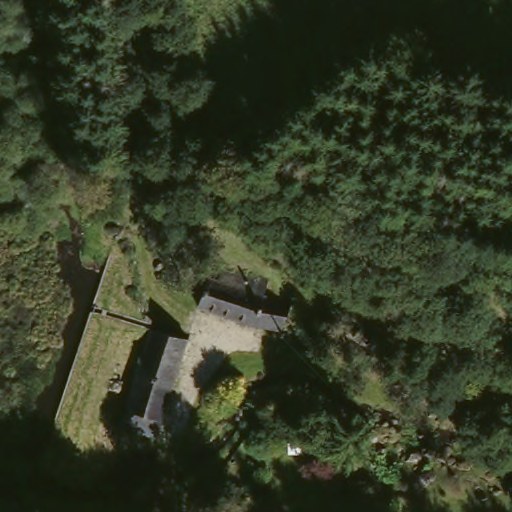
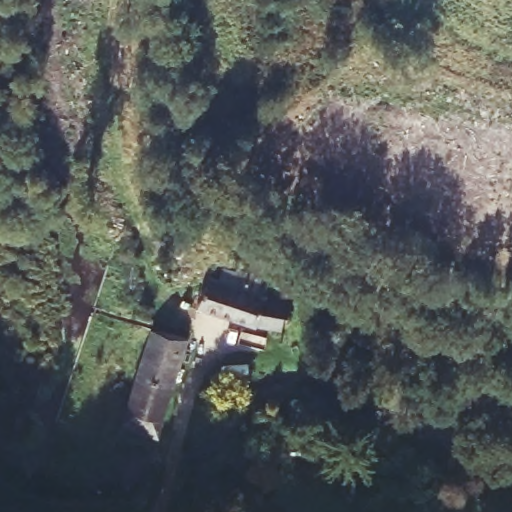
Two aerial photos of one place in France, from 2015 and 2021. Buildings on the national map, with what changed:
unchanged [(286,337),(211,320),(217,292),(220,283),(223,268),(256,275),(278,280),(273,295),(296,301),(286,337)]
unchanged [(186,334),(152,433),(119,422),(151,323),(186,334)]

